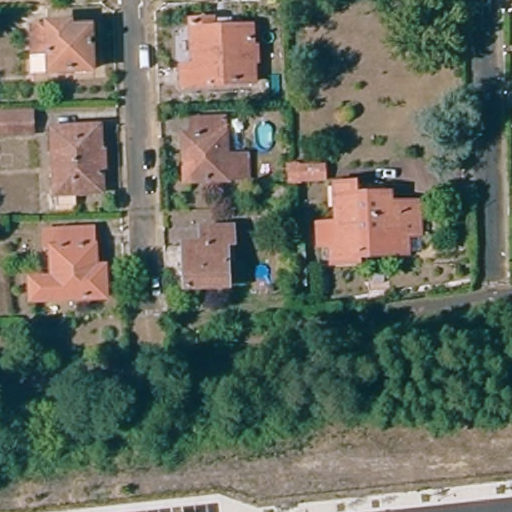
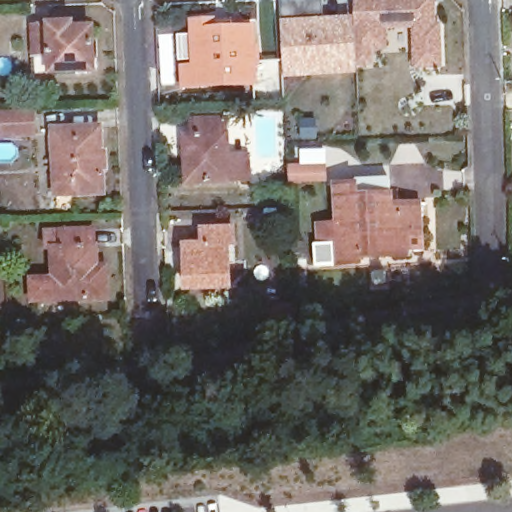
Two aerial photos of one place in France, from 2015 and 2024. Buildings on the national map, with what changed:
new [(353,74),(283,78),(280,19),(281,0),(323,0),(323,16),(354,16),(354,64),(353,74)]
new [(434,0),(435,22),(439,22),(441,66),(413,67),(412,26),(383,28),(384,50),(371,49),(371,65),(354,64),(354,0),(434,0)]
unchanged [(194,69),(193,21),(231,21),(232,29),(252,28),(252,49),(257,49),(258,61),(255,61),(255,81),(184,84),(184,69),(194,69)]
unchanged [(65,24),(65,27),(87,26),(88,69),(29,71),(27,26),(65,24)]
unchanged [(29,107),(29,129),(0,130),(0,108),(29,107)]
unchanged [(226,119),(227,161),(248,160),(249,179),(187,181),(186,135),(193,135),(193,120),(226,119)]
unchanged [(101,125),(104,186),(57,188),(55,126),(101,125)]
unchanged [(323,165),(324,180),(299,181),(298,166),(323,165)]
unchanged [(366,256),(339,257),(337,239),(325,239),(324,220),(343,220),(341,180),(361,179),(361,190),(394,187),(395,198),(422,197),(425,243),(414,244),(414,248),(398,249),(365,250),(366,256)]
unchanged [(287,204),(258,205),(257,190),(286,189),(287,204)]
unchanged [(229,222),(230,255),(222,255),(222,282),(182,283),(181,240),(198,239),(197,224),(229,222)]
unchanged [(54,278),(53,249),(46,250),(46,231),(94,229),(95,266),(105,266),(107,297),(31,301),(30,280),(54,278)]

